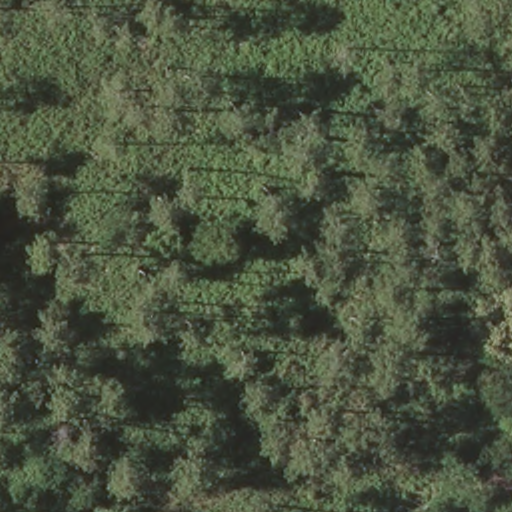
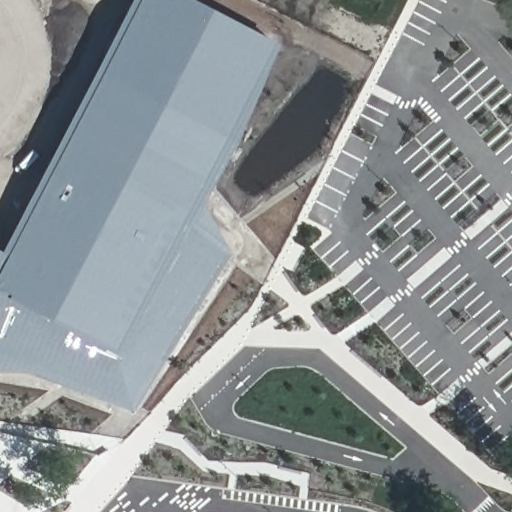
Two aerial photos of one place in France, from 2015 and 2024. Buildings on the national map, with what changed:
new [(134,412),(27,372),(0,372),(0,251),(1,251),(130,0),(193,0),(278,44),(237,141),(202,204),(231,254),(134,412)]

